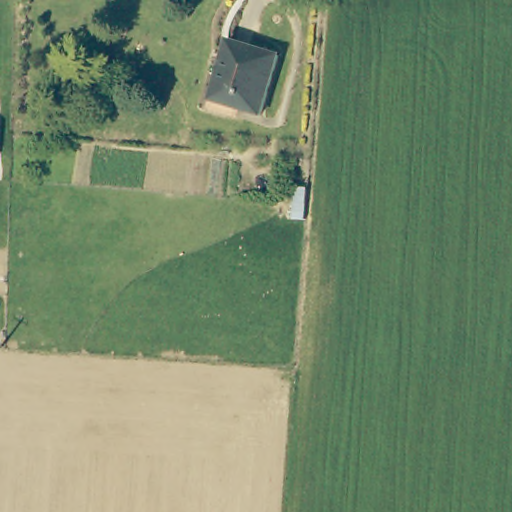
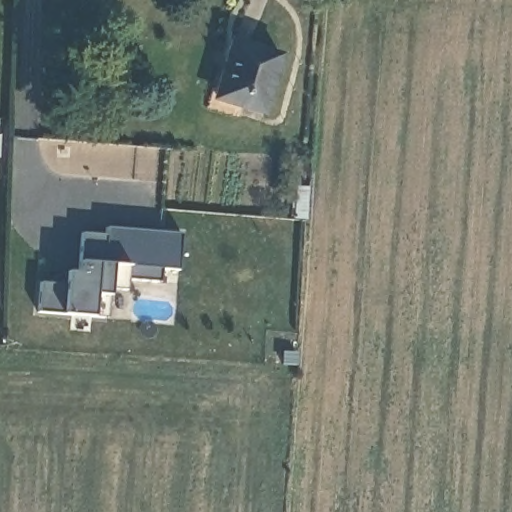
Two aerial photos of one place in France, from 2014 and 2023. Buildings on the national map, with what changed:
unchanged [(230,59),(224,57),(229,42),(279,60),(260,115),(215,100),(230,59)]
new [(177,270),(163,270),(161,282),(126,280),(125,289),(109,287),(107,295),(104,318),(92,316),(63,313),(39,311),(40,280),(67,281),(68,272),(79,272),(80,262),(81,232),(105,234),(106,227),(181,234),(177,270)]

